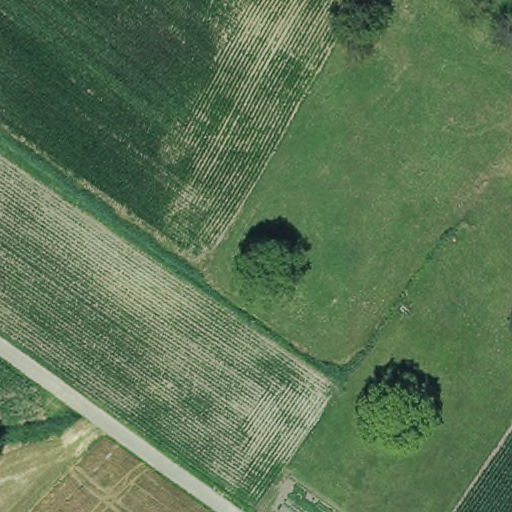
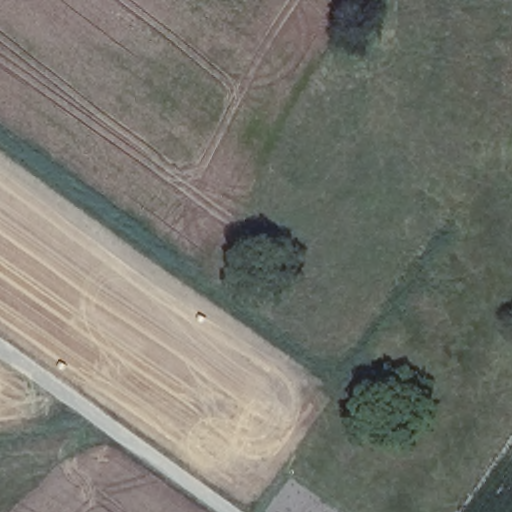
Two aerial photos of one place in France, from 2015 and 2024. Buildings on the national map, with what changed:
[]

